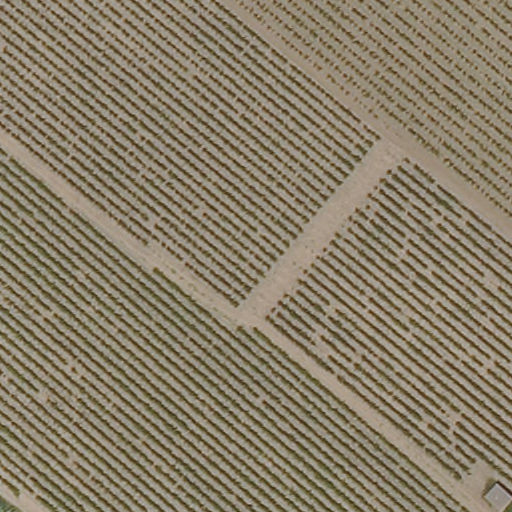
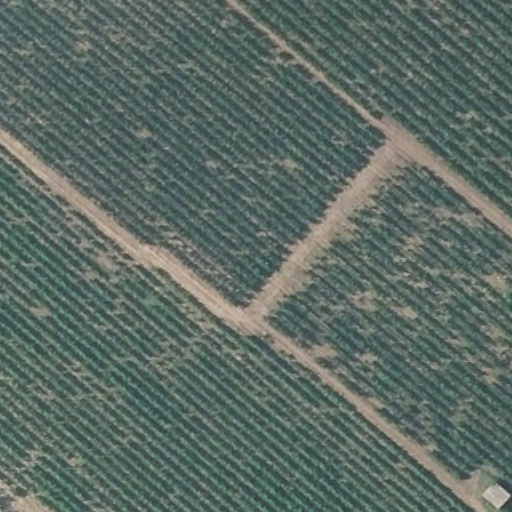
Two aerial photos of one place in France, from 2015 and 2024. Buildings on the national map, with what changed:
unchanged [(512,504),(507,512),(505,512),(487,500),(498,482),(512,491),(512,504)]

